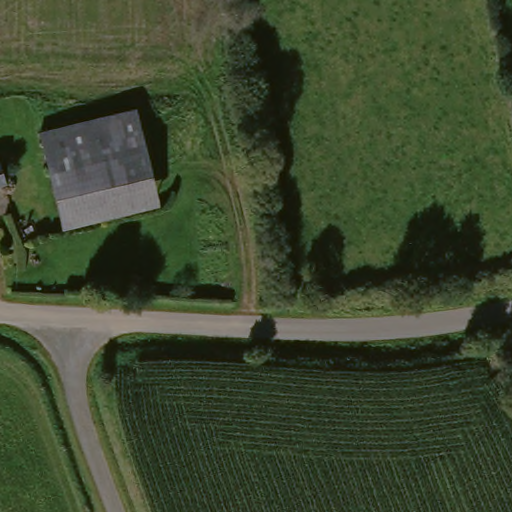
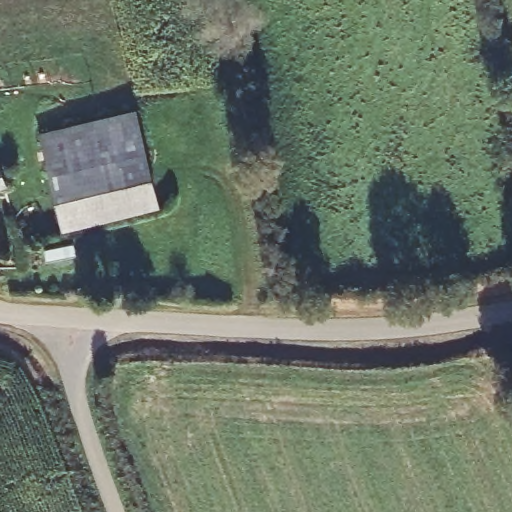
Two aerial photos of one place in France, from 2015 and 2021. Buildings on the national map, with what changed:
unchanged [(136,113),(145,152),(45,171),(37,132),(136,113)]
unchanged [(156,206),(56,225),(45,171),(145,152),(156,206)]
unchanged [(17,154),(21,169),(7,174),(10,181),(0,185),(0,154),(1,154),(2,159),(17,154)]

